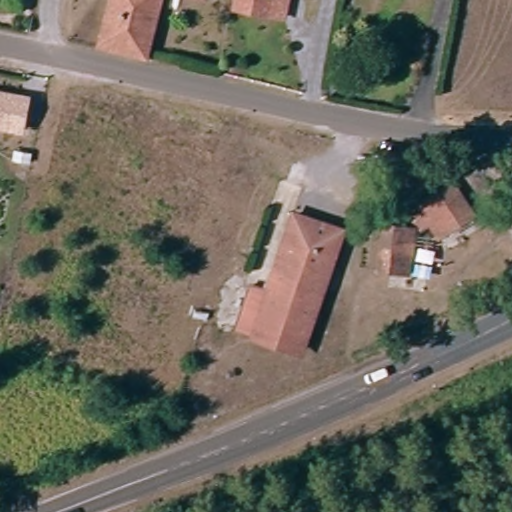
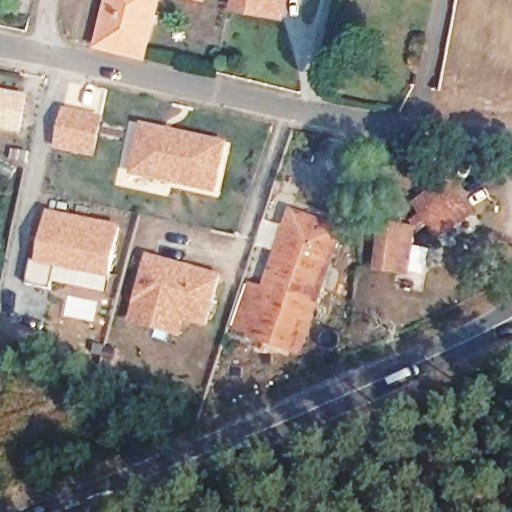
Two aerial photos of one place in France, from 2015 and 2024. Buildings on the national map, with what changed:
unchanged [(162,0),(149,57),(99,47),(108,0),(162,0)]
unchanged [(232,2),(233,0),(288,0),(285,15),(232,2)]
unchanged [(0,82),(19,86),(34,89),(30,104),(27,122),(0,117),(0,82)]
new [(57,148),(65,108),(105,116),(97,157),(57,148)]
new [(133,174),(144,124),(228,142),(218,194),(133,174)]
unchanged [(467,212),(433,234),(424,219),(414,225),(410,219),(420,213),(412,201),(447,179),(467,212)]
unchanged [(384,191),(380,202),(365,197),(369,185),(384,191)]
new [(52,287),(30,283),(34,258),(40,259),(51,211),(123,224),(114,277),(55,267),(52,287)]
unchanged [(272,297),(296,217),(346,232),(309,355),(242,335),(252,292),(272,297)]
unchanged [(406,220),(401,266),(372,263),(376,217),(406,220)]
new [(131,322),(149,254),(224,273),(210,327),(186,320),(182,335),(131,322)]

